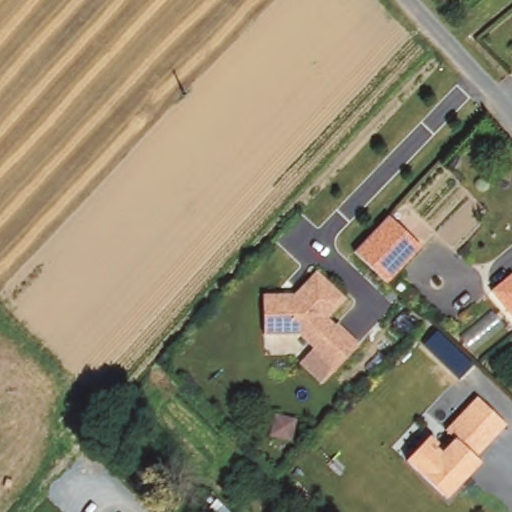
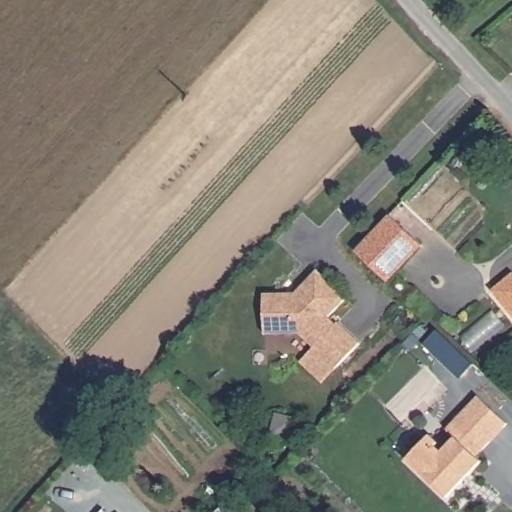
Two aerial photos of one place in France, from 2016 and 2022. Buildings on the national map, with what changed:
unchanged [(384,283),(373,273),(364,265),(354,254),(384,219),(386,217),(397,229),(418,248),(384,283)]
unchanged [(340,296),(322,316),(330,322),(332,321),(354,342),(329,368),(306,347),(308,345),(294,332),(259,333),(257,293),(288,291),(311,268),(340,296)]
unchanged [(489,293),(512,275),(512,318),(489,293)]
unchanged [(423,347),(439,331),(473,365),(458,380),(423,347)]
unchanged [(317,380),(298,363),(310,351),(329,368),(317,380)]
unchanged [(505,427),(474,460),(479,465),(444,501),(419,477),(453,441),(444,432),(476,399),(505,427)]
unchanged [(404,465),(427,438),(430,435),(439,444),(437,447),(442,452),(419,477),(404,465)]

